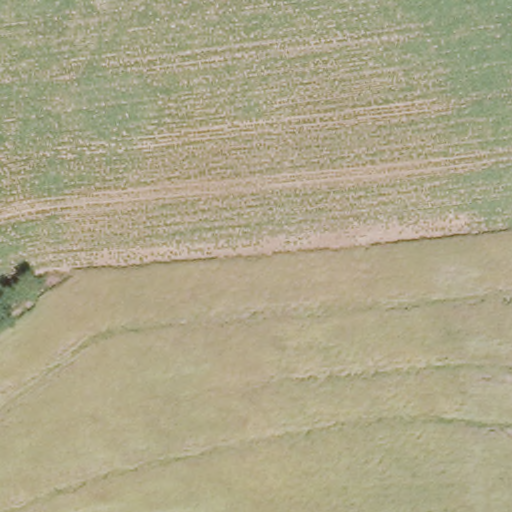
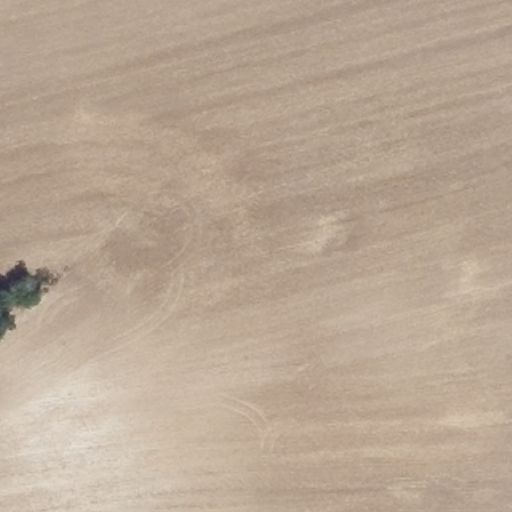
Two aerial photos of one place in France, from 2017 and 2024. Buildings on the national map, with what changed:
[]

